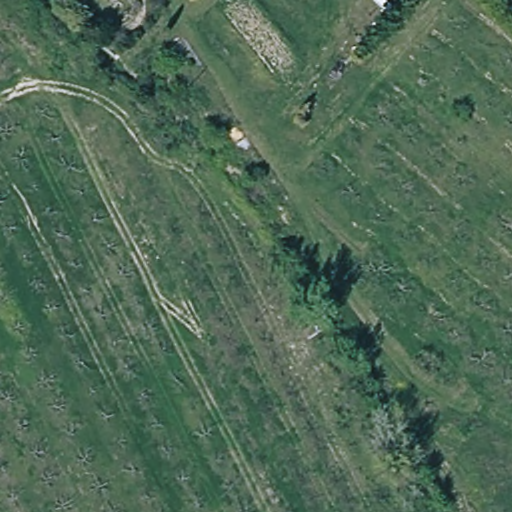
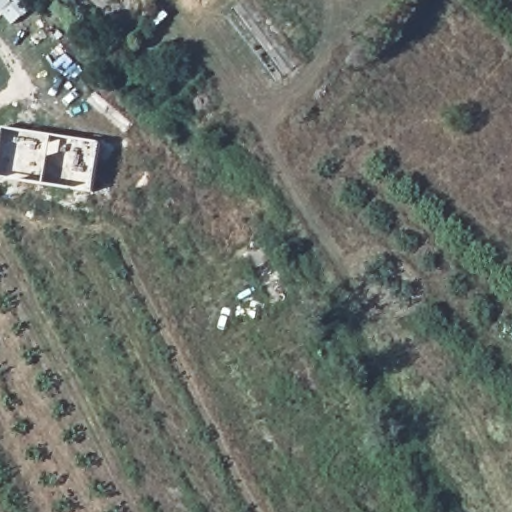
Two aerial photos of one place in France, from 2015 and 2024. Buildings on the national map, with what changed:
new [(93,182),(93,191),(0,176),(0,131),(1,126),(99,142),(93,182)]

